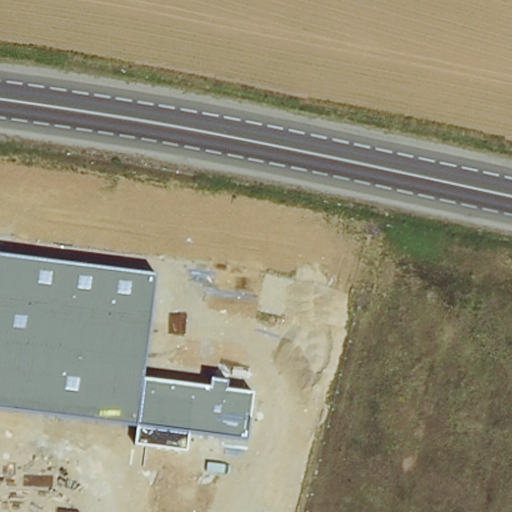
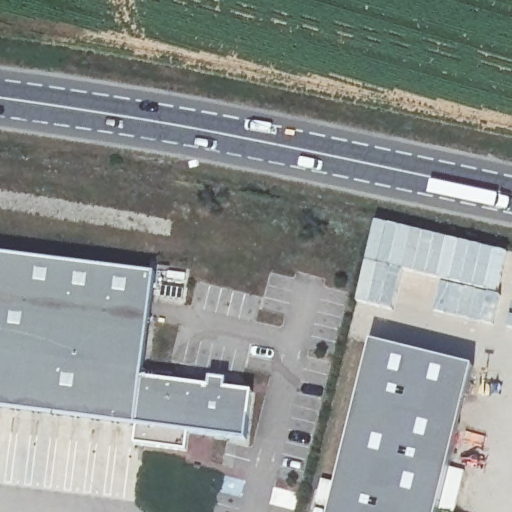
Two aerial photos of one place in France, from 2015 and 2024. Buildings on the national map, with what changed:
new [(375,222),(507,252),(499,295),(442,280),(402,270),(366,262),(375,222)]
unchanged [(245,442),(189,436),(186,450),(135,446),(138,427),(0,411),(0,257),(157,277),(143,382),(210,391),(210,382),(227,384),(226,390),(252,395),(245,442)]
new [(366,262),(402,270),(392,311),(356,302),(366,262)]
new [(442,280),(499,295),(492,325),(434,310),(442,280)]
new [(512,328),(508,327),(512,313),(512,328)]
new [(371,345),(474,370),(438,512),(330,512),(371,345)]

